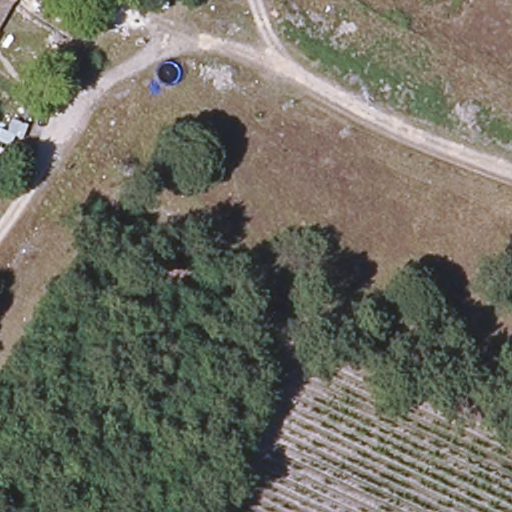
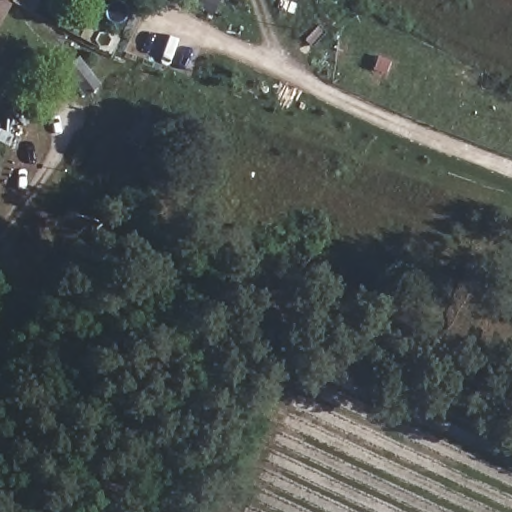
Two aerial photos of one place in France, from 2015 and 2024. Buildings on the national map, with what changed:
unchanged [(0,33),(0,0),(16,0),(0,33)]

